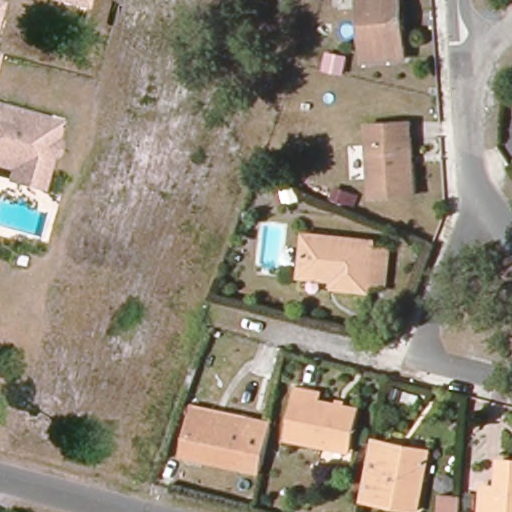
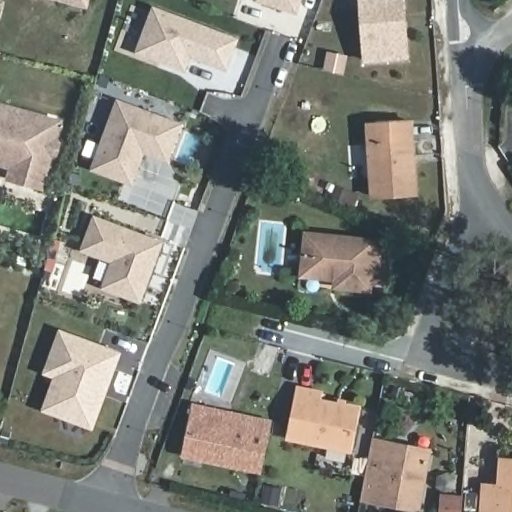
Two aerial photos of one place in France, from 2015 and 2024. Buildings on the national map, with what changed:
unchanged [(63,0),(88,0),(87,6),(63,0)]
new [(297,13),(259,1),(259,0),(301,0),(297,13)]
unchanged [(366,59),(362,0),(401,0),(402,19),(403,55),(366,59)]
new [(0,16),(0,4),(3,5),(0,16)]
new [(156,11),(237,42),(227,70),(197,59),(192,73),(140,53),(156,11)]
unchanged [(344,76),(320,70),(326,49),(349,54),(344,76)]
new [(120,104),(181,127),(168,161),(145,152),(132,185),(95,170),(120,104)]
unchanged [(57,140),(62,141),(58,163),(51,162),(44,194),(6,185),(7,172),(0,170),(0,106),(62,121),(57,140)]
unchanged [(412,123),(417,192),(373,195),(368,126),(412,123)]
unchanged [(332,200),(337,189),(350,194),(345,205),(332,200)]
new [(97,221),(162,245),(141,301),(106,288),(116,263),(85,251),(97,221)]
unchanged [(302,235),(370,240),(369,248),(382,250),(378,284),(367,283),(367,290),(331,286),(331,280),(303,277),(305,265),(300,265),(302,235)]
new [(47,374),(62,335),(120,355),(93,428),(60,416),(46,411),(58,378),(47,374)]
unchanged [(320,395),(318,403),(357,411),(349,453),(287,441),(298,391),(320,395)]
unchanged [(193,420),(192,419),(195,406),(252,418),(249,431),(252,419),(272,423),(261,472),(185,455),(193,420)]
unchanged [(374,440),(429,451),(418,510),(362,499),(374,440)]
unchanged [(500,486),(502,459),(512,460),(512,512),(483,512),(484,485),(500,486)]
unchanged [(463,512),(441,512),(442,498),(463,500),(463,512)]

